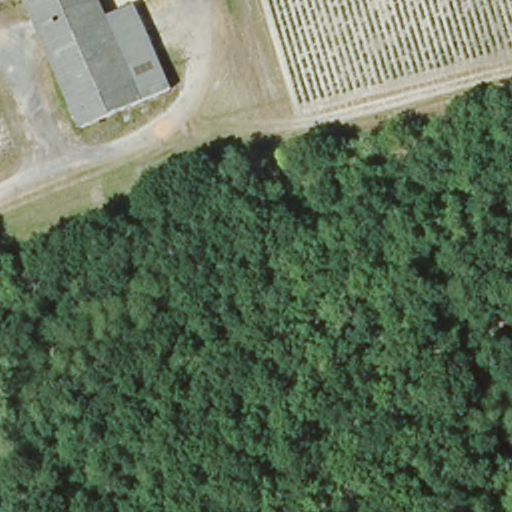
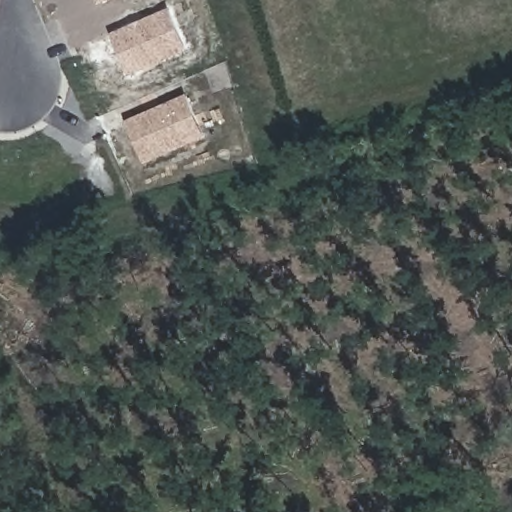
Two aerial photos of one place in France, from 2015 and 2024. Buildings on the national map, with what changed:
demolished [(13,0),(0,5),(0,0),(13,0)]
demolished [(146,6),(183,93),(92,134),(32,0),(109,0),(116,18),(146,6)]
new [(98,0),(110,0),(100,5),(98,0)]
new [(190,50),(130,76),(111,34),(170,8),(190,50)]
new [(189,93),(207,136),(146,163),(128,120),(189,93)]
demolished [(16,149),(0,155),(0,111),(16,149)]

